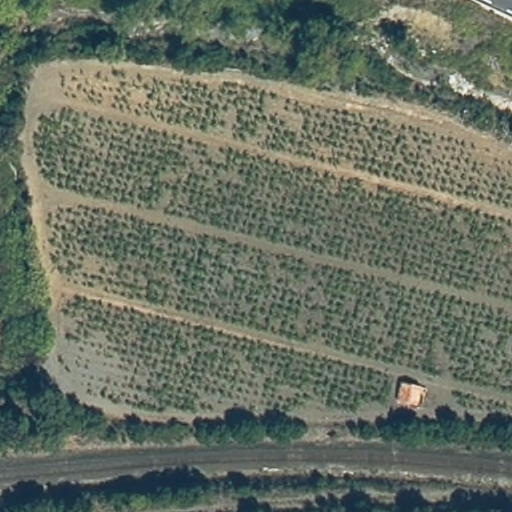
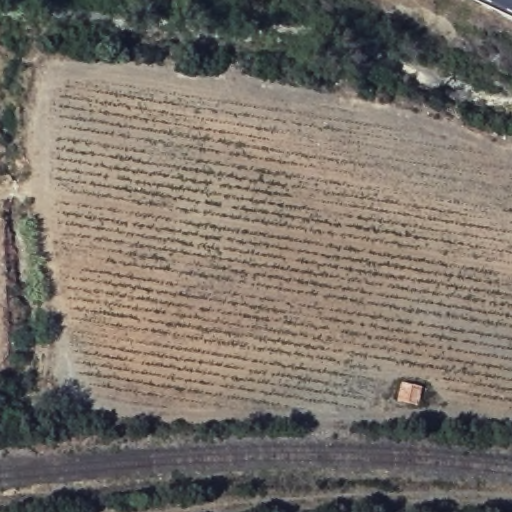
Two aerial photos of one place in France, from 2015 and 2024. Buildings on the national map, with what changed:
unchanged [(428,384),(423,400),(400,395),(404,375),(428,384)]

